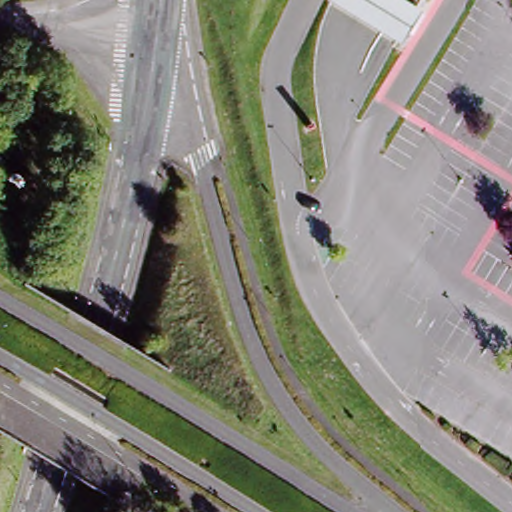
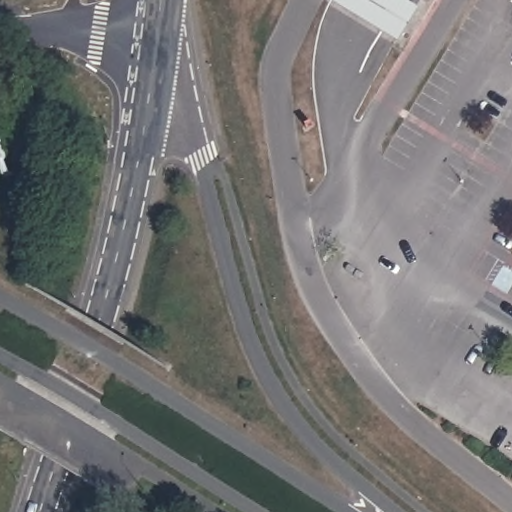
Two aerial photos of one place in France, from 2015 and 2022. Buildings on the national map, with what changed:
unchanged [(349,0),(383,0),(415,20),(396,46),(342,10),(349,0)]

